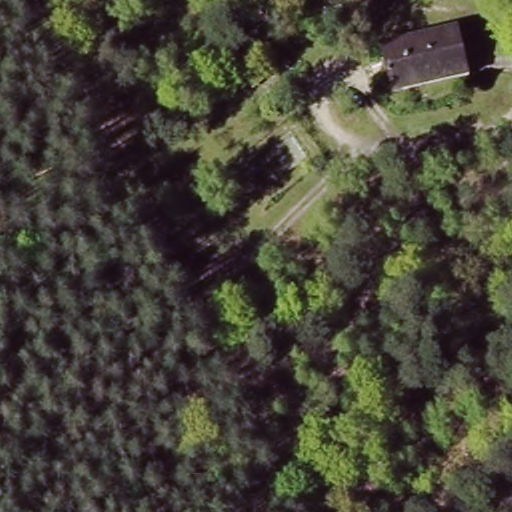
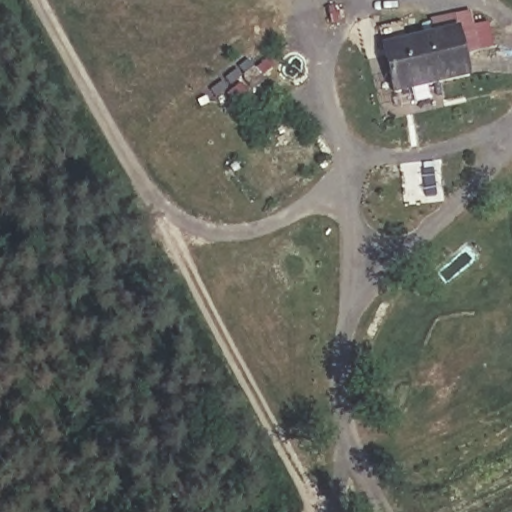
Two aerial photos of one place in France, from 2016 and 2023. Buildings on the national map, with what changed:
unchanged [(453,38),(463,82),(392,99),(382,54),(453,38)]

